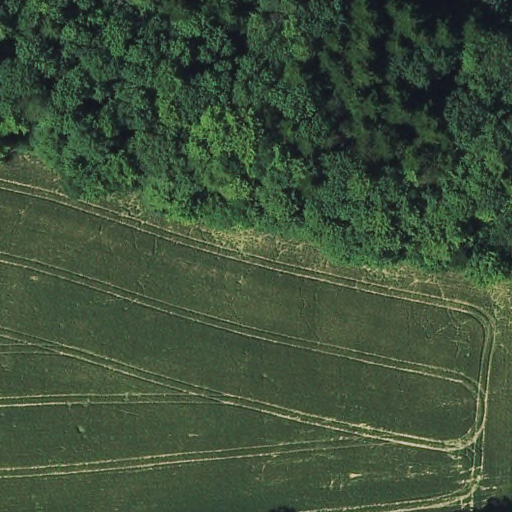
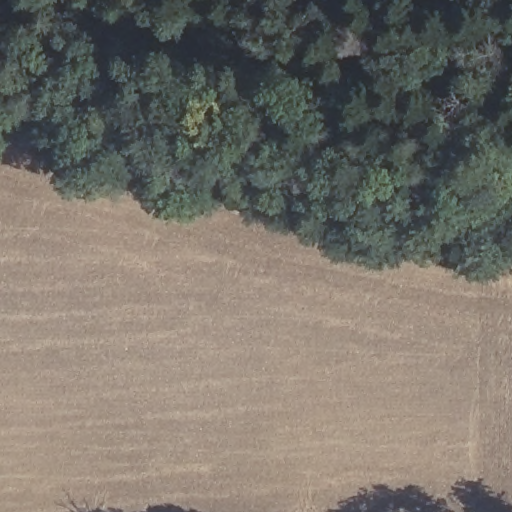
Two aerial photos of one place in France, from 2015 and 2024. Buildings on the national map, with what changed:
[]

